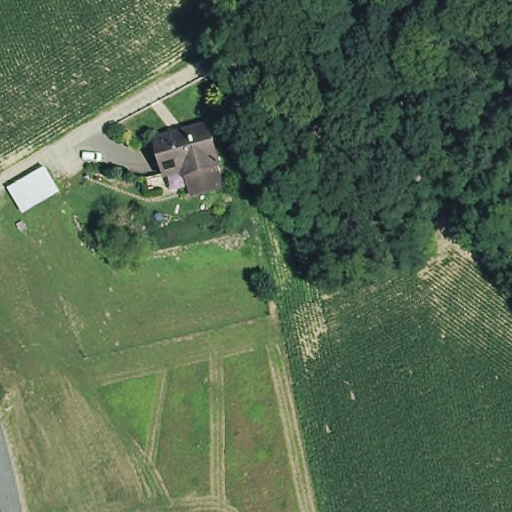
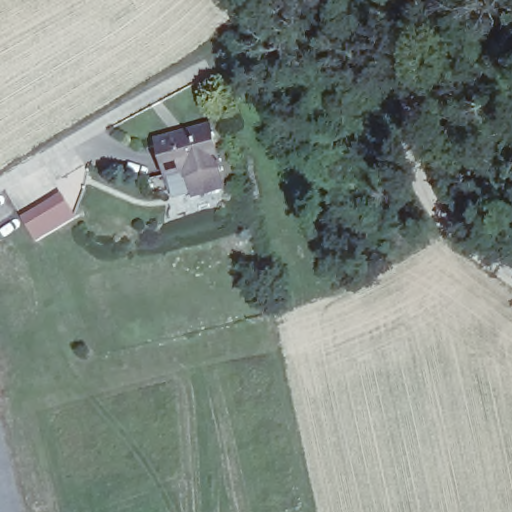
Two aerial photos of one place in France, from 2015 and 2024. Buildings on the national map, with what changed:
unchanged [(154,134),(179,129),(212,121),(222,164),(188,172),(187,166),(163,172),(154,134)]
new [(74,219),(33,243),(18,219),(60,193),(74,219)]
unchanged [(0,489),(0,411),(25,512),(6,512),(0,489)]

